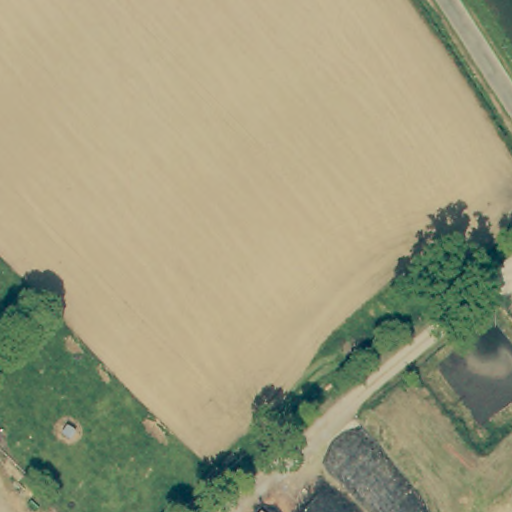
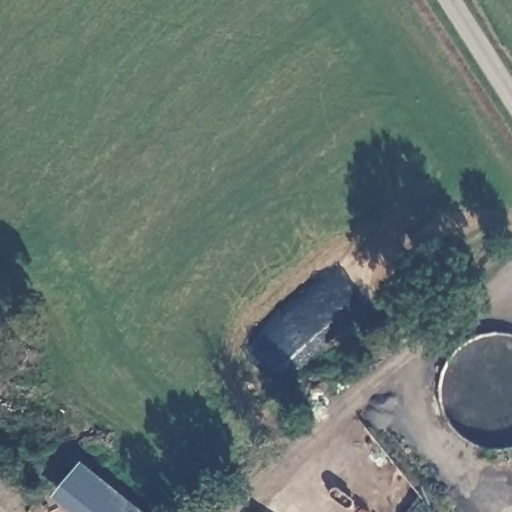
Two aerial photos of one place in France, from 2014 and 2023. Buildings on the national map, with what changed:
new [(55,498),(85,463),(148,512),(72,512),(55,498)]

